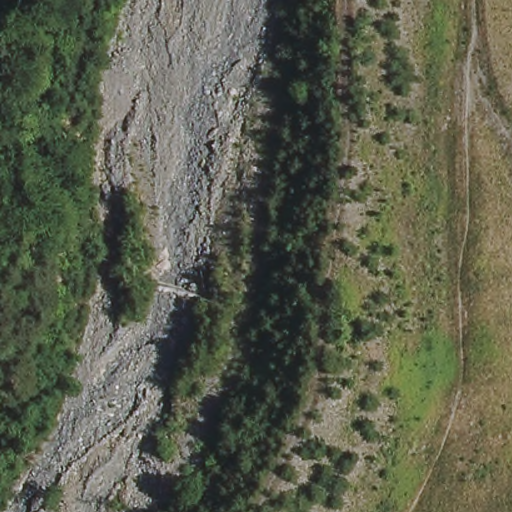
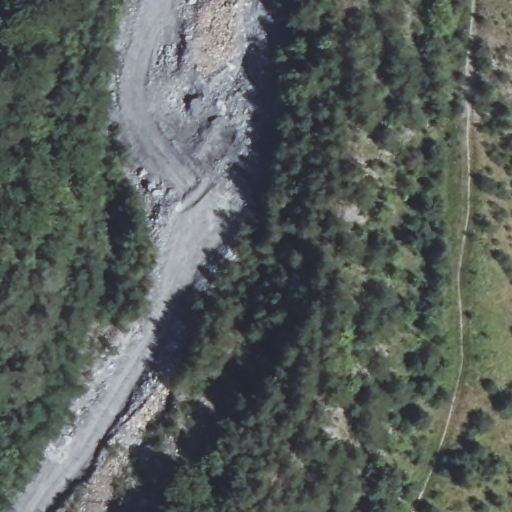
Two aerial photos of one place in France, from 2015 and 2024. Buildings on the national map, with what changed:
[]

